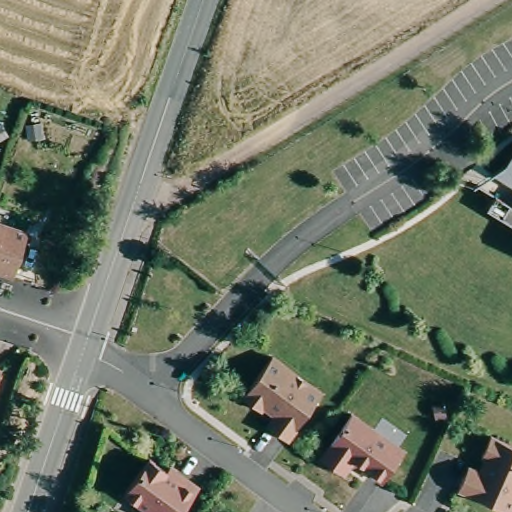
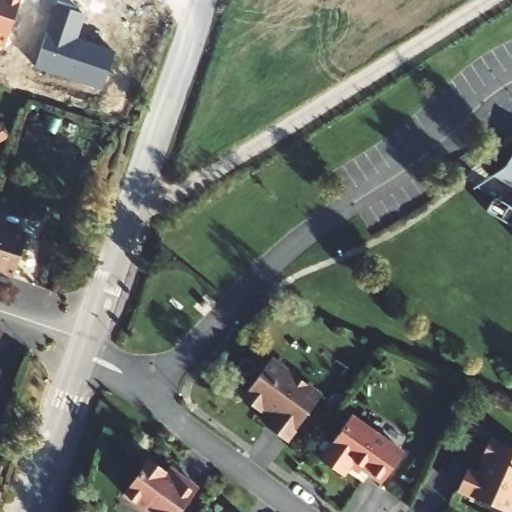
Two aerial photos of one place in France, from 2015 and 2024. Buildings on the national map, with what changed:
new [(0,0),(19,0),(3,47),(0,46),(0,0)]
new [(55,5),(85,15),(77,38),(114,51),(101,89),(35,68),(55,5)]
unchanged [(512,145),(512,225),(481,205),(490,191),(472,179),(487,169),(499,163),(512,145)]
unchanged [(18,282),(0,275),(0,226),(33,237),(18,282)]
unchanged [(262,358),(312,393),(280,441),(265,431),(272,421),(254,408),(252,412),(234,399),(262,358)]
unchanged [(389,447),(395,452),(375,482),(345,461),(335,475),(312,459),(313,458),(344,415),(389,447)]
unchanged [(457,474),(469,479),(478,459),(474,457),(482,437),(512,450),(512,494),(504,512),(500,512),(450,490),(457,474)]
unchanged [(117,489),(137,461),(160,478),(164,473),(174,480),(187,490),(171,512),(134,512),(112,496),(117,489)]

